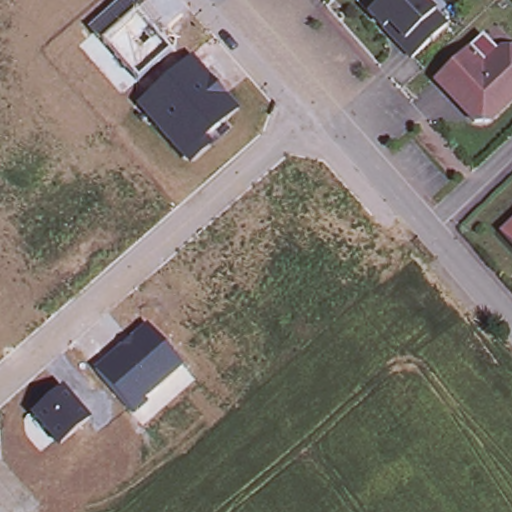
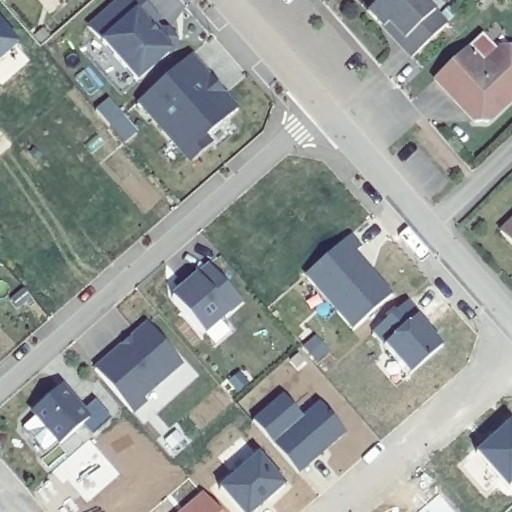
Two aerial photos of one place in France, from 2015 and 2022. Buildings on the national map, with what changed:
unchanged [(89,28),(121,0),(141,0),(145,5),(135,14),(169,52),(137,80),(101,41),(89,28)]
unchanged [(380,0),(419,0),(444,26),(409,59),(395,44),(382,30),(366,13),(380,0)]
new [(19,39),(0,55),(0,16),(19,39)]
unchanged [(506,53),(512,60),(512,99),(486,122),(472,123),(472,109),(459,96),(452,102),(432,82),(480,37),(497,52),(506,53)]
unchanged [(137,105),(192,59),(239,111),(207,139),(212,145),(189,164),(137,105)]
unchanged [(512,216),(512,246),(497,230),(512,216)]
new [(355,233),(364,245),(357,251),(392,291),(352,327),(307,275),(355,233)]
new [(187,289),(190,293),(200,283),(197,280),(210,268),(242,305),(205,337),(173,301),(187,289)]
new [(412,301),(443,342),(412,369),(375,331),(412,301)]
unchanged [(95,370),(148,325),(183,368),(142,400),(147,406),(135,416),(95,370)]
unchanged [(32,412),(63,388),(90,420),(59,445),(32,412)]
new [(286,395),(304,412),(321,400),(345,430),(299,469),(255,419),(286,395)]
new [(512,480),(509,482),(481,448),(512,422),(512,480)]
new [(260,450),(286,481),(251,512),(246,512),(221,483),(260,450)]
new [(202,491),(220,512),(179,512),(202,491)]
new [(454,512),(419,512),(419,511),(440,496),(454,512)]

